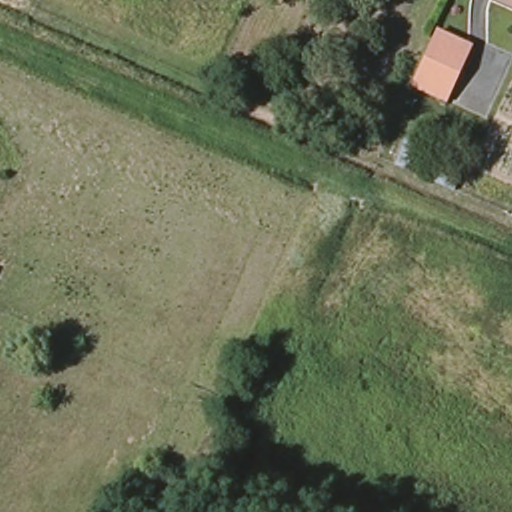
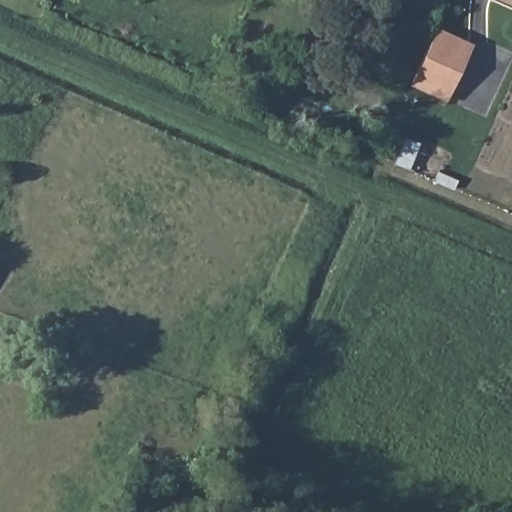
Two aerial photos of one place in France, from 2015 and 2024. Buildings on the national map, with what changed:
unchanged [(435,33),(469,48),(450,92),(445,101),(411,86),(416,76),(435,33)]

